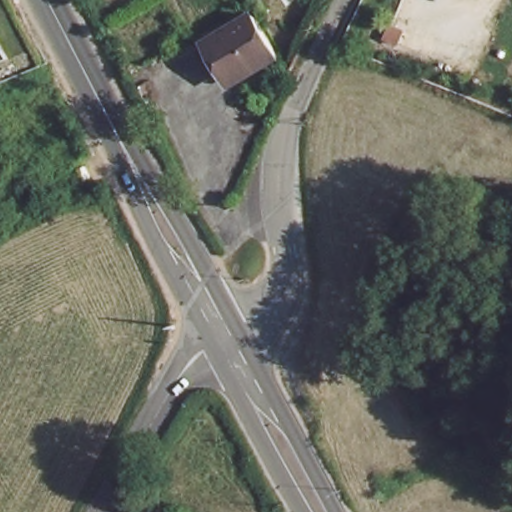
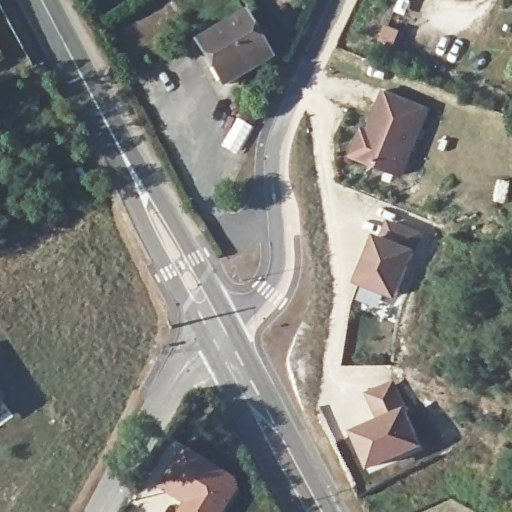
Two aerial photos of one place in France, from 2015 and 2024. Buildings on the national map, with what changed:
unchanged [(223,77),(201,38),(245,12),(268,51),(223,77)]
new [(390,44),(378,40),(384,25),(395,29),(390,44)]
new [(361,127),(368,129),(383,89),(431,108),(404,178),(350,159),(361,127)]
new [(423,232),(417,250),(396,299),(357,283),(376,234),(382,237),(387,219),(423,232)]
new [(376,421),(365,392),(392,379),(405,406),(422,445),(370,468),(352,430),(376,421)]
new [(206,459),(243,485),(224,512),(175,512),(180,505),(146,486),(173,440),(206,459)]

